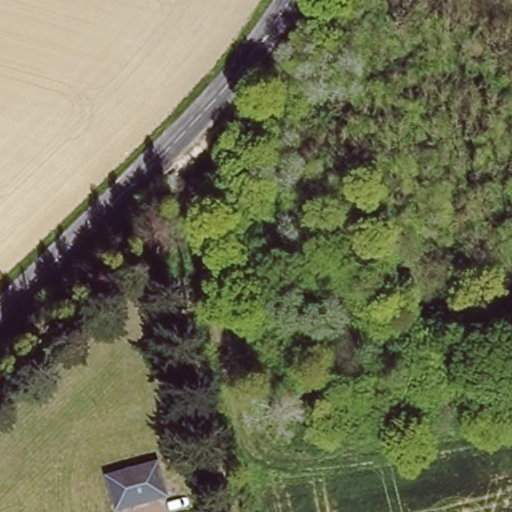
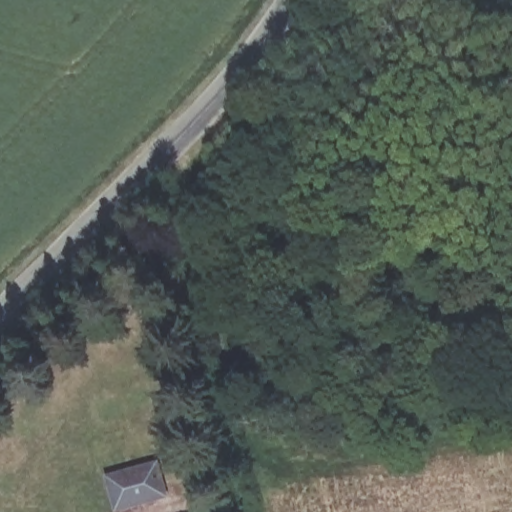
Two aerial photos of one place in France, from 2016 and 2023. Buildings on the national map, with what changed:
unchanged [(119,507),(109,476),(157,462),(166,493),(119,507)]

